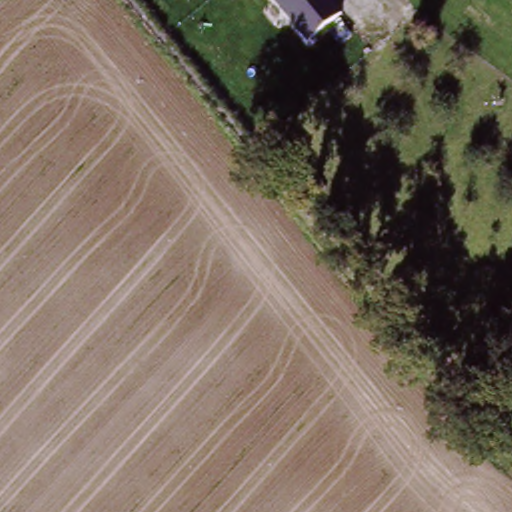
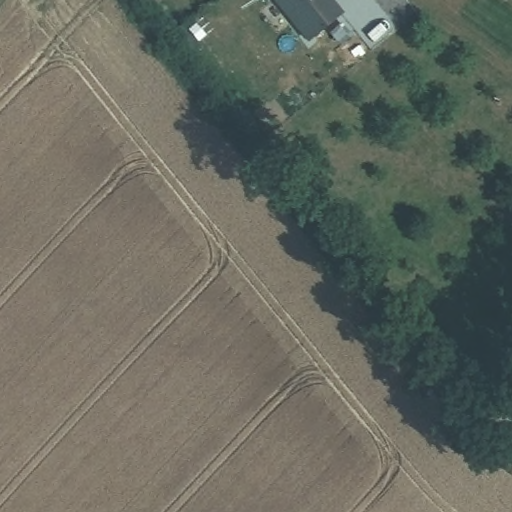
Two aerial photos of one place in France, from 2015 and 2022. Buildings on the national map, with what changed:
unchanged [(308,44),(272,0),(331,0),(342,14),(308,44)]

